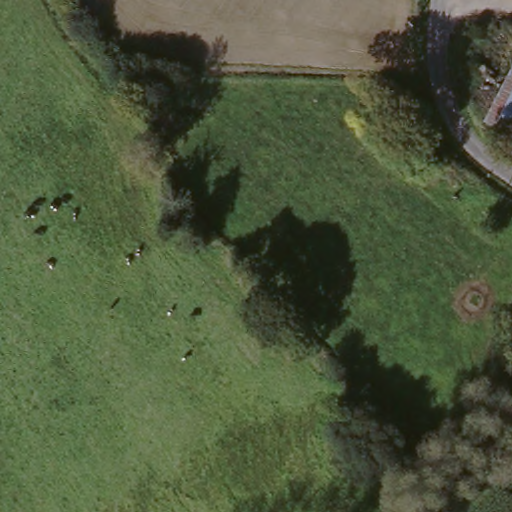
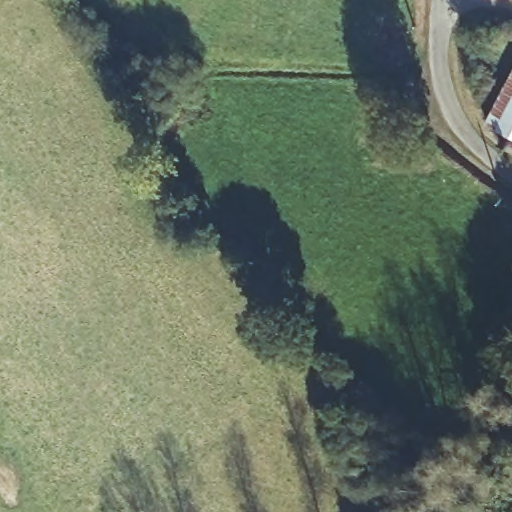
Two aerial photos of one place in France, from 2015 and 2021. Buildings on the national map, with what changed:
unchanged [(482,133),(512,76),(512,148),(482,133)]

